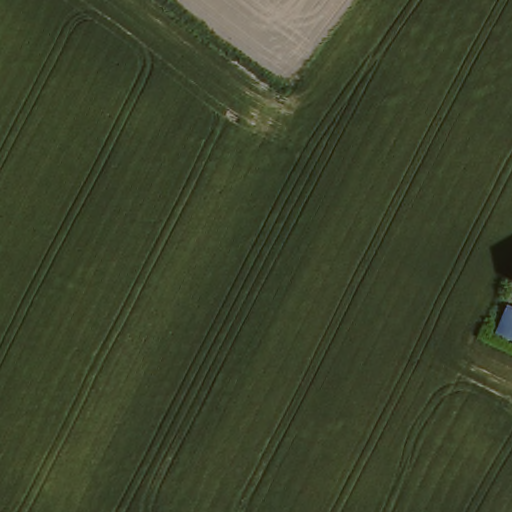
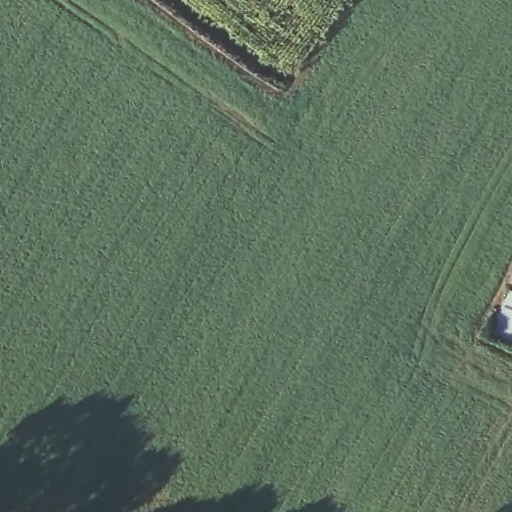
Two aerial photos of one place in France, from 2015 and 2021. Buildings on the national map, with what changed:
unchanged [(512,314),(512,339),(504,335),(512,314)]

